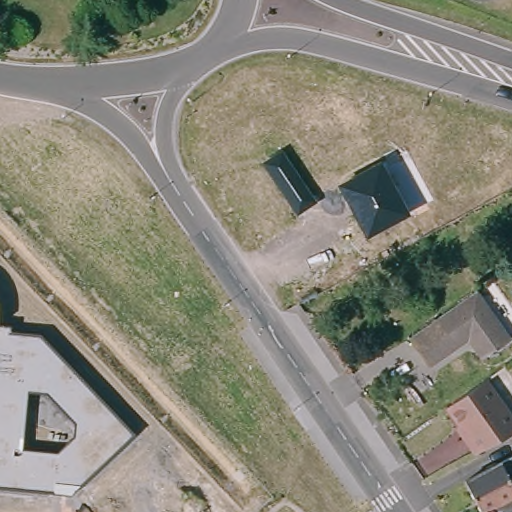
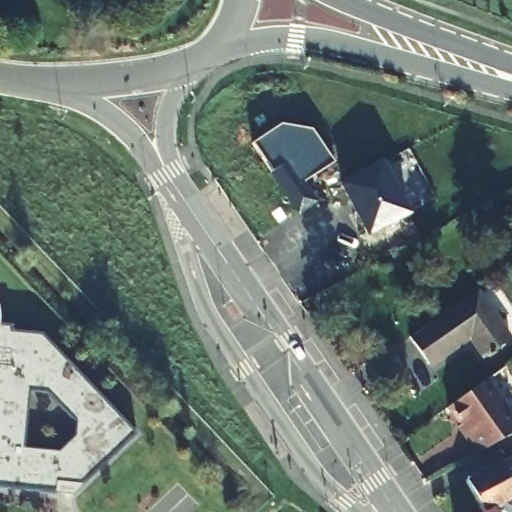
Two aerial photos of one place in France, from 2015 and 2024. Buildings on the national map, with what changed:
new [(313,131),(334,164),(303,182),(279,145),(261,156),(253,142),(282,125),(313,131)]
unchanged [(256,159),(279,145),(316,202),(292,217),(256,159)]
unchanged [(335,183),(380,161),(408,215),(364,237),(335,183)]
unchanged [(440,323),(439,321),(478,297),(507,347),(481,362),(468,341),(455,348),(454,347),(425,363),(410,341),(440,323)]
unchanged [(12,326),(12,332),(39,335),(133,435),(73,495),(0,488),(0,324),(12,326)]
unchanged [(512,424),(512,437),(475,457),(464,442),(466,440),(446,411),(485,384),(512,424)]
unchanged [(466,486),(512,462),(512,508),(507,511),(507,512),(480,512),(466,486)]

